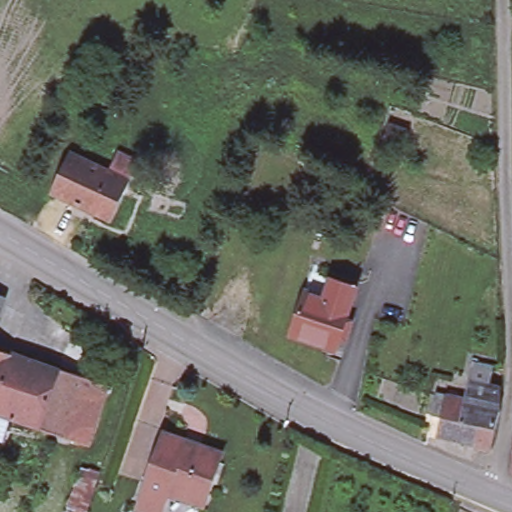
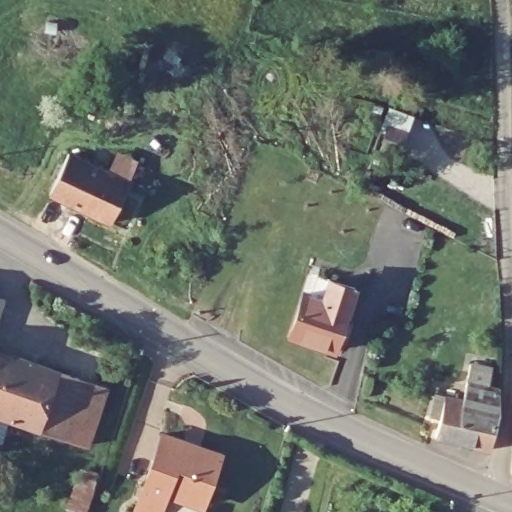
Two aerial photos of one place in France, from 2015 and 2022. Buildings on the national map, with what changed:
unchanged [(406,131),(399,152),(382,146),(389,125),(406,131)]
unchanged [(130,182),(112,223),(50,195),(69,154),(130,182)]
unchanged [(335,355),(290,341),(305,297),(311,278),(330,285),(355,293),(350,311),(345,325),(353,327),(343,358),(335,355)]
unchanged [(0,396),(0,351),(13,355),(0,396)]
unchanged [(57,371),(37,427),(0,415),(0,396),(13,355),(57,370),(57,371)]
unchanged [(467,382),(471,365),(493,369),(490,386),(500,388),(500,411),(490,450),(435,437),(440,417),(431,415),(436,394),(445,395),(464,400),(467,382)]
unchanged [(57,370),(97,383),(77,440),(37,427),(57,371),(57,370)]
unchanged [(122,392),(102,449),(77,440),(97,383),(122,392)]
unchanged [(142,495),(164,430),(222,450),(205,498),(169,486),(163,502),(160,512),(154,512),(137,506),(142,495)]
unchanged [(90,512),(63,512),(78,465),(102,475),(90,512)]

